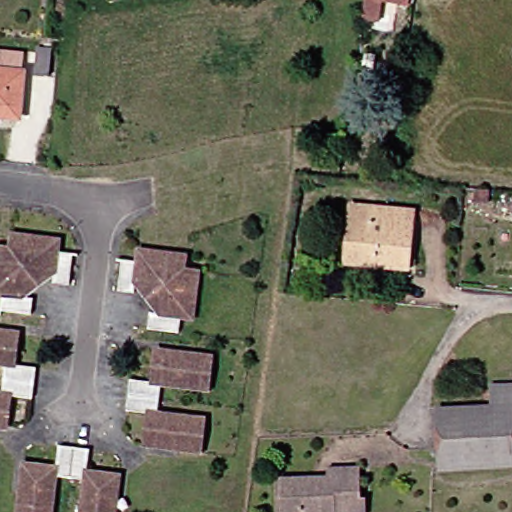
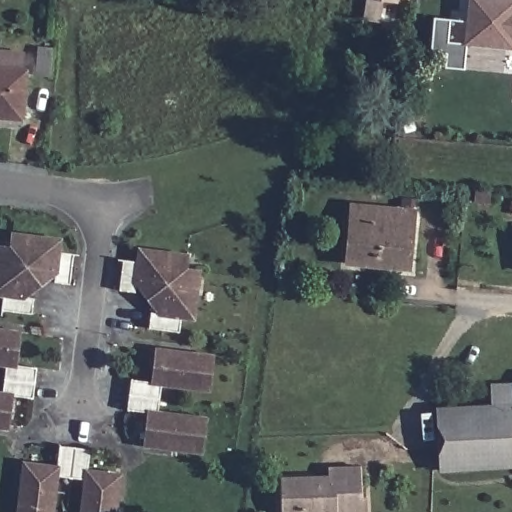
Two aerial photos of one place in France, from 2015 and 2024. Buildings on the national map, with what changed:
unchanged [(419,0),(418,10),(403,8),(403,4),(393,2),(391,13),(403,14),(401,24),(388,21),(373,20),(375,0),(419,0)]
new [(432,19),(447,19),(465,21),(467,0),(512,0),(512,42),(512,49),(463,45),(461,69),(443,68),(444,54),(429,53),(432,19)]
unchanged [(43,49),(57,50),(54,78),(40,76),(43,49)]
unchanged [(30,54),(28,73),(29,73),(26,118),(1,115),(0,119),(0,51),(30,54)]
unchanged [(477,190),(489,192),(488,203),(476,202),(477,190)]
unchanged [(357,205),(419,211),(414,269),(351,264),(357,205)]
unchanged [(39,298),(37,314),(6,311),(8,296),(0,295),(0,261),(2,246),(16,248),(17,234),(18,234),(66,239),(64,252),(79,253),(75,284),(59,283),(60,273),(29,296),(39,298)]
unchanged [(145,293),(129,291),(133,260),(148,262),(149,249),(197,255),(198,255),(196,269),(210,271),(203,319),(192,318),(190,332),(159,328),(161,312),(170,314),(146,283),(145,293)]
unchanged [(13,394),(16,366),(0,364),(0,329),(26,332),(23,365),(47,368),(43,399),(19,397),(14,429),(0,427),(0,392),(13,394)]
unchanged [(157,414),(133,411),(136,379),(161,382),(165,350),(220,356),(216,391),(167,384),(164,413),(212,419),(208,454),(152,447),(157,414)]
unchanged [(497,407),(502,407),(501,386),(512,385),(512,467),(499,468),(497,407)]
unchanged [(449,448),(447,409),(497,407),(499,468),(450,471),(449,448)]
unchanged [(34,463),(67,467),(69,446),(76,447),(101,450),(98,471),(131,475),(126,512),(91,512),(95,481),(67,477),(63,512),(27,512),(34,463)]
unchanged [(377,512),(291,512),(291,478),(339,476),(338,468),(371,467),(372,499),(377,499),(377,512)]

